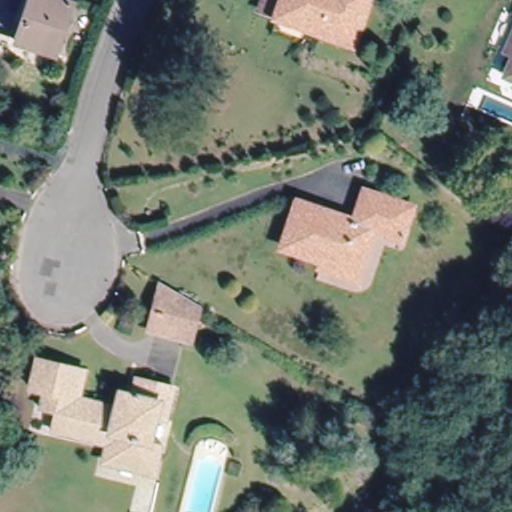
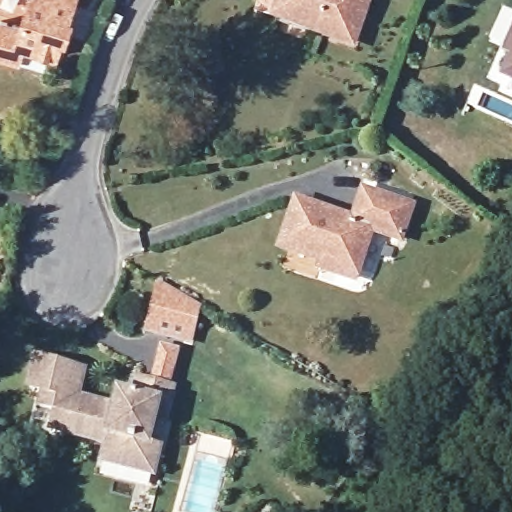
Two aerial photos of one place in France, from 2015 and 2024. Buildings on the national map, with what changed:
unchanged [(60,49),(22,36),(35,0),(76,0),(60,49)]
unchanged [(258,11),(262,0),(368,0),(352,43),(258,11)]
unchanged [(2,46),(0,45),(0,31),(1,30),(7,31),(22,36),(18,51),(2,46)]
unchanged [(512,37),(512,48),(508,46),(512,37)]
unchanged [(512,57),(512,72),(507,70),(512,57)]
unchanged [(320,257),(322,250),(283,238),(299,192),(356,211),(367,181),(413,197),(402,231),(373,221),(360,259),(356,270),(320,257)]
unchanged [(195,303),(186,338),(151,328),(162,284),(195,303)]
unchanged [(117,382),(129,385),(133,370),(168,380),(161,410),(152,407),(145,435),(155,438),(148,463),(100,451),(105,432),(50,418),(54,400),(39,395),(42,381),(26,377),(32,352),(79,363),(72,388),(113,398),(117,382)]

